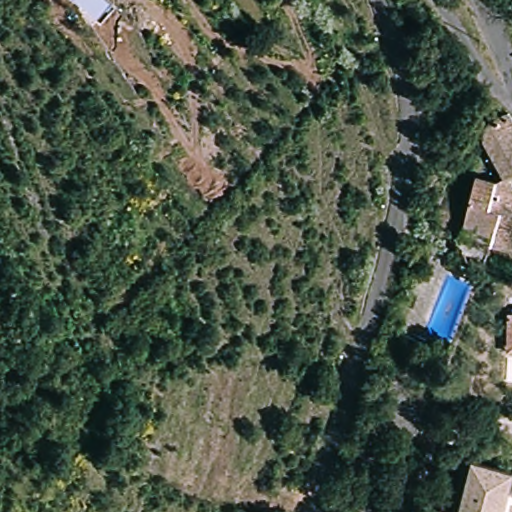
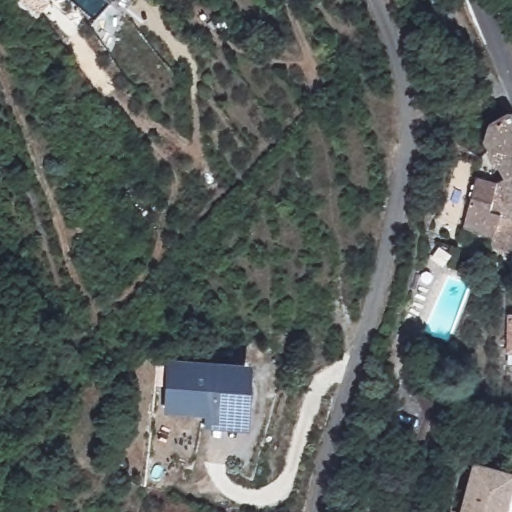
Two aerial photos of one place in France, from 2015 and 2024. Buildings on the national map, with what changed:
unchanged [(512,119),(512,179),(509,180),(502,169),(491,149),(486,151),(482,141),(484,140),(480,131),(484,119),(504,106),(512,119)]
unchanged [(472,169),(490,175),(502,169),(509,180),(512,187),(512,215),(512,239),(509,250),(484,241),(487,230),(457,221),(472,169)]
unchanged [(504,313),(512,314),(512,354),(505,353),(504,313)]
new [(167,358),(251,363),(248,428),(204,426),(204,414),(165,413),(167,358)]
unchanged [(470,460),(512,471),(512,480),(504,512),(457,512),(470,460)]

